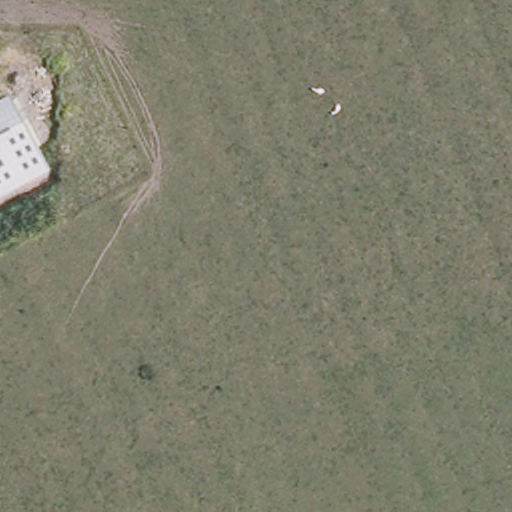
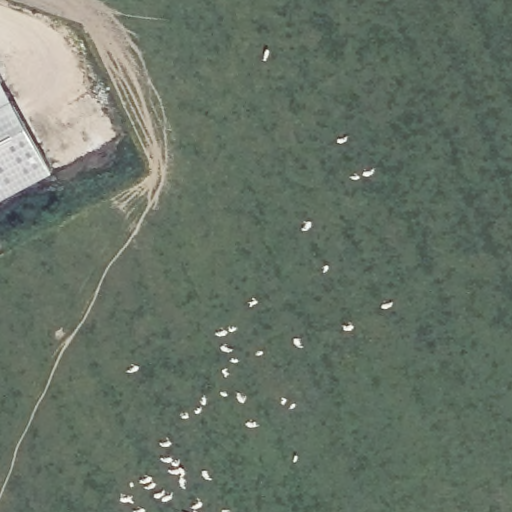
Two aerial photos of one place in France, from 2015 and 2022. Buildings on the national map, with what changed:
unchanged [(49,170),(0,196),(0,103),(10,98),(49,170)]

